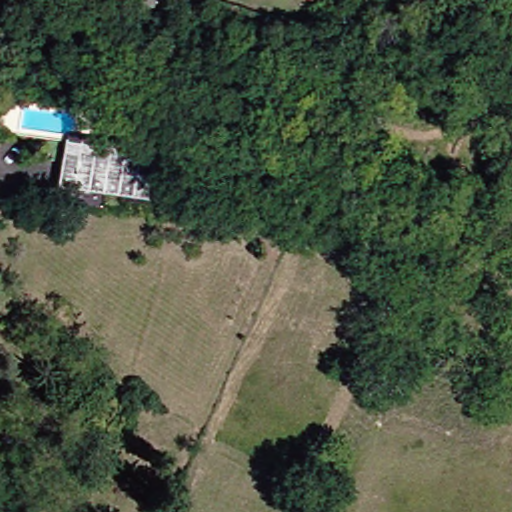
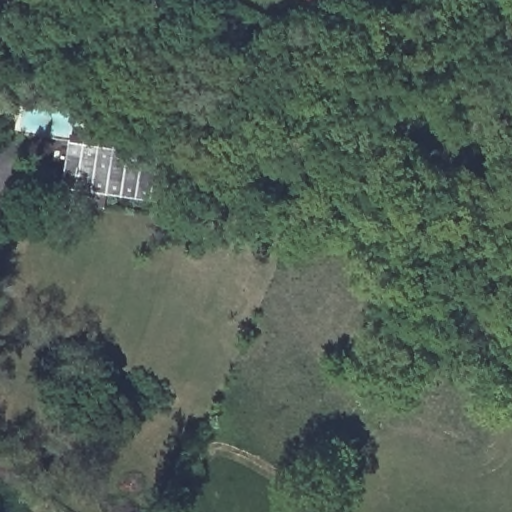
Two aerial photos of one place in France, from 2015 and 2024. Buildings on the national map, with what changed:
unchanged [(130,151),(128,160),(143,162),(138,192),(67,182),(73,144),(130,151)]

